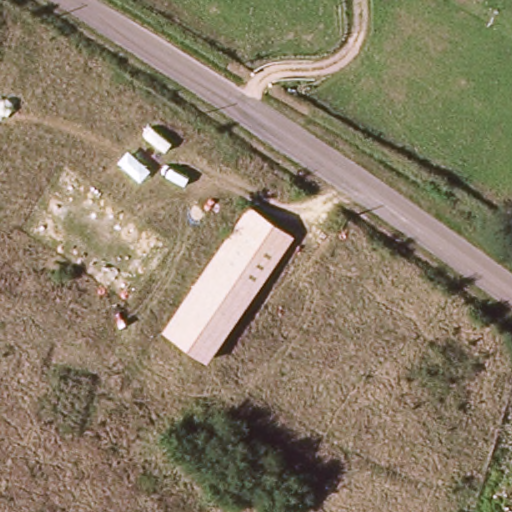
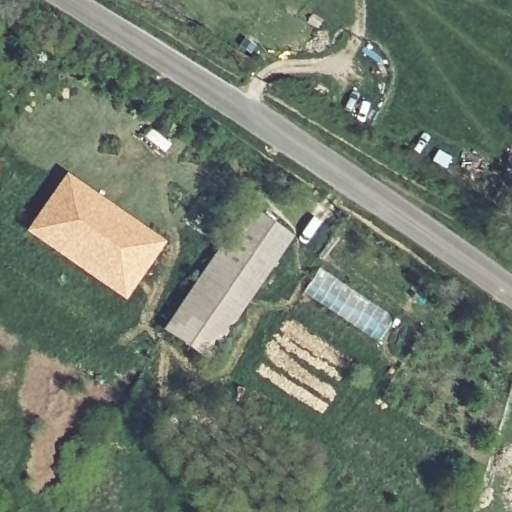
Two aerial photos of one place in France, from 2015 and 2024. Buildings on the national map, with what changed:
new [(64,172),(163,240),(123,298),(24,230),(64,172)]
unchanged [(250,207),(293,238),(207,363),(164,331),(250,207)]

